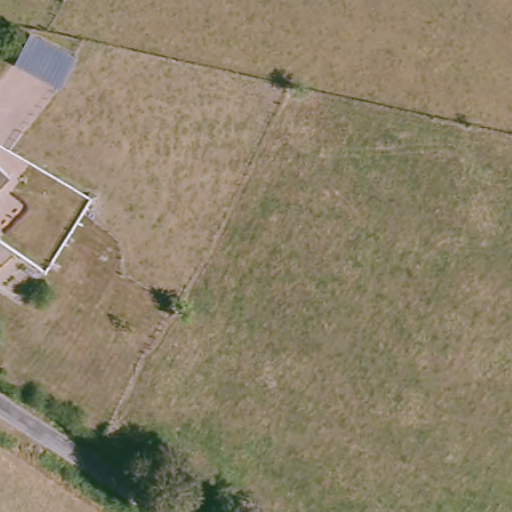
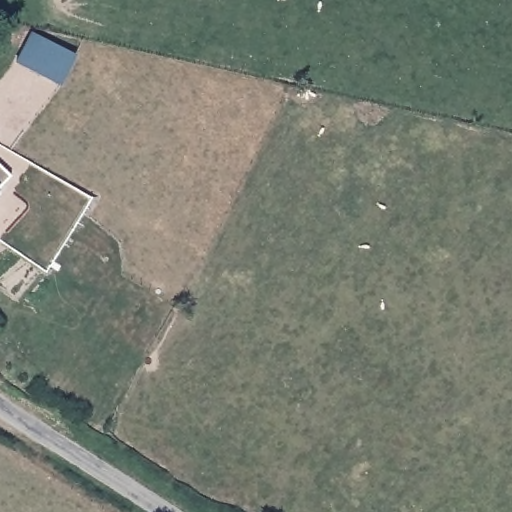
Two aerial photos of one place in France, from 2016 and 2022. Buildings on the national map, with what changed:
unchanged [(64,82),(20,59),(34,32),(78,55),(64,82)]
unchanged [(0,189),(0,172),(8,179),(0,189)]

